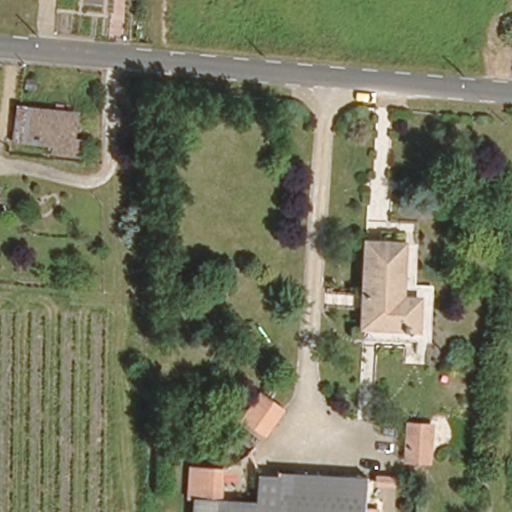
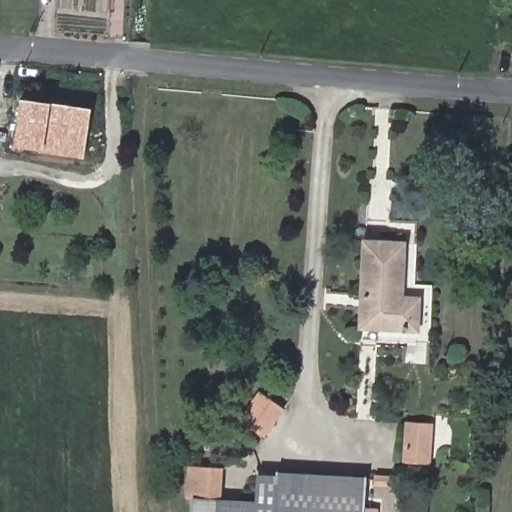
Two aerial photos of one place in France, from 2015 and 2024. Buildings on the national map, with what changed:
unchanged [(49,146),(50,137),(11,135),(15,104),(68,109),(64,147),(49,146)]
unchanged [(404,300),(419,301),(417,329),(368,327),(373,246),(406,247),(404,300)]
unchanged [(263,442),(234,422),(257,387),(287,407),(263,442)]
unchanged [(400,461),(405,421),(432,423),(428,463),(400,461)]
unchanged [(187,463),(218,466),(216,498),(214,512),(186,512),(187,463)]
unchanged [(361,507),(376,507),(375,512),(214,512),(216,498),(253,501),(257,471),(366,478),(361,507)]

